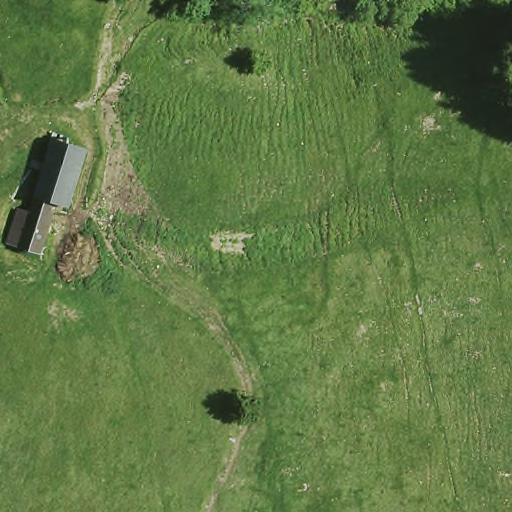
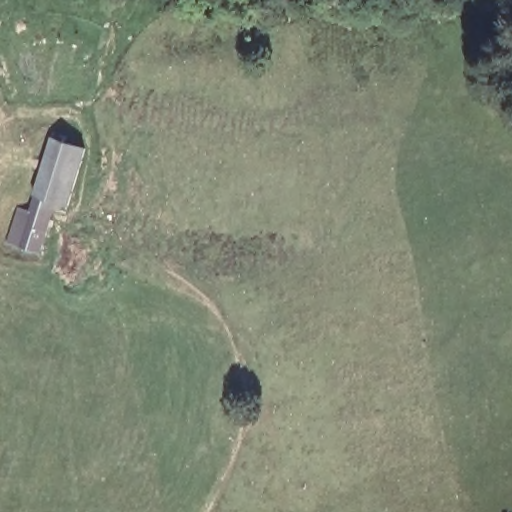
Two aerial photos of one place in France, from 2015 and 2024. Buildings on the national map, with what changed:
unchanged [(93,136),(70,199),(52,192),(35,185),(55,123),(93,136)]
unchanged [(34,243),(0,232),(0,229),(12,192),(35,185),(52,192),(34,243)]

